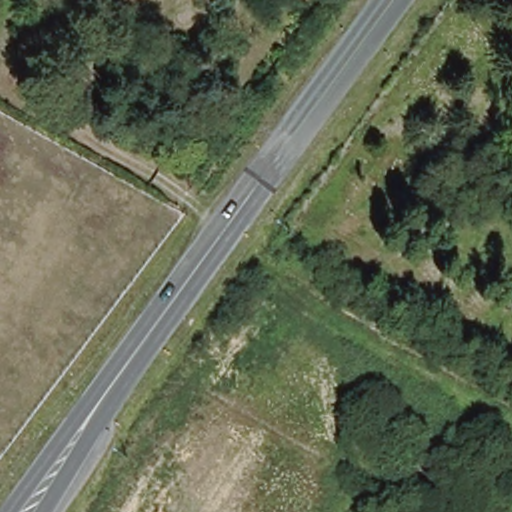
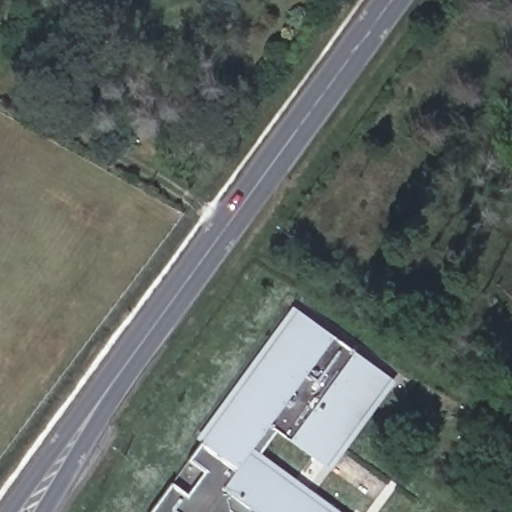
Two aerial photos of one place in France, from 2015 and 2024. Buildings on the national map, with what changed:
new [(171,482),(187,495),(204,472),(188,460),(201,441),(195,438),(293,305),(395,380),(330,470),(276,431),(260,452),(342,512),(150,512),(171,482)]

